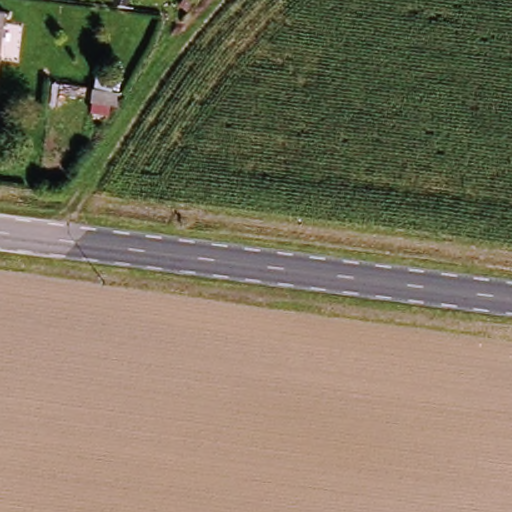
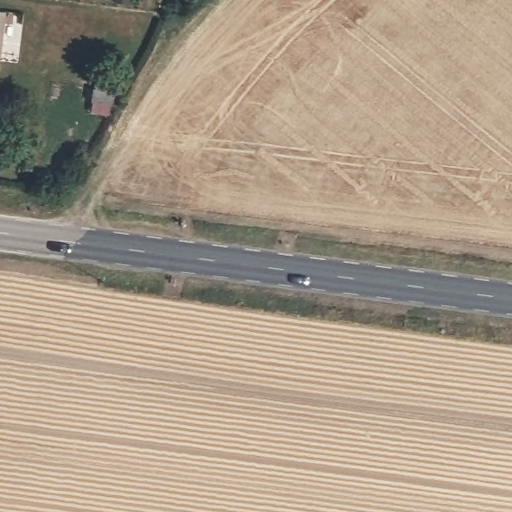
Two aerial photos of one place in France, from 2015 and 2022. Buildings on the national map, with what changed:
unchanged [(6,13),(0,53),(0,13),(6,13)]

